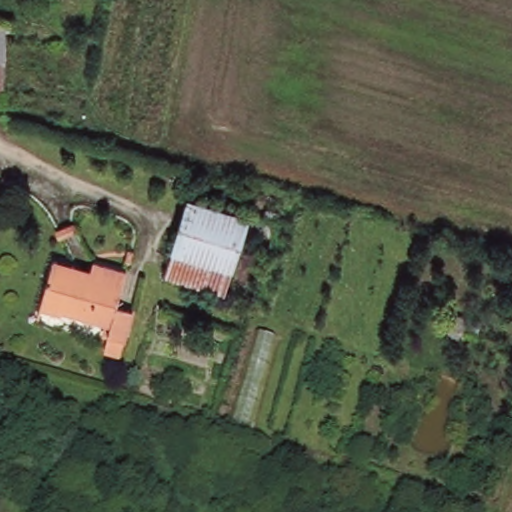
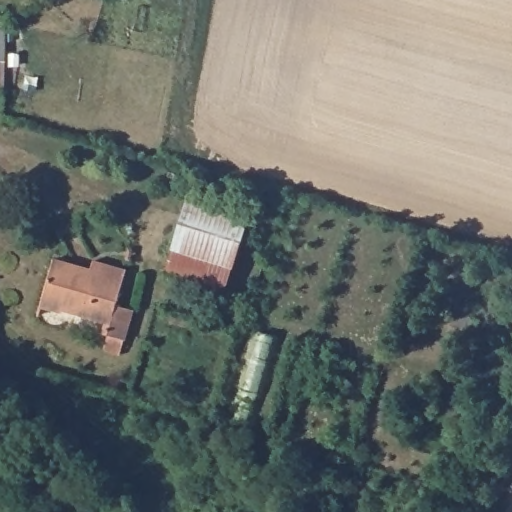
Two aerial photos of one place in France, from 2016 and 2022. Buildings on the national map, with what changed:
unchanged [(14,25),(13,29),(12,53),(11,69),(10,86),(4,86),(4,68),(0,67),(0,24),(14,25)]
unchanged [(251,213),(229,290),(170,272),(194,195),(251,213)]
unchanged [(94,268),(96,259),(130,269),(120,303),(136,307),(124,353),(108,349),(112,333),(105,331),(107,319),(65,307),(64,312),(45,305),(58,258),(76,263),(94,268)]
unchanged [(252,429),(236,425),(262,332),(279,337),(252,429)]

